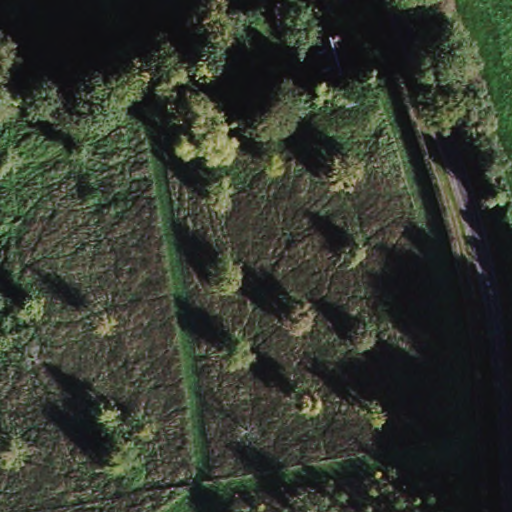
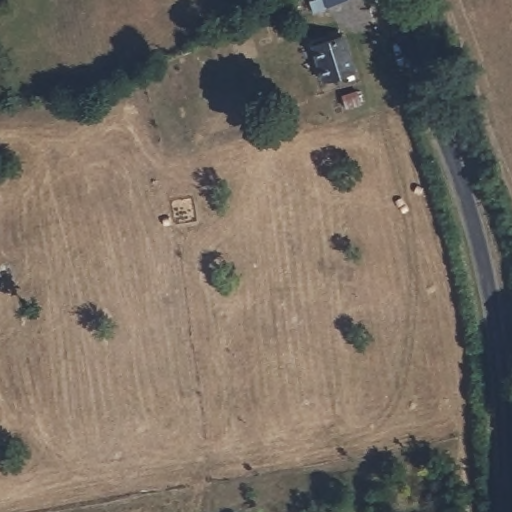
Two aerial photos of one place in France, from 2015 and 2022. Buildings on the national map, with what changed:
unchanged [(327,4),(325,0),(339,0),(327,4)]
unchanged [(320,42),(346,36),(354,72),(329,78),(320,42)]

